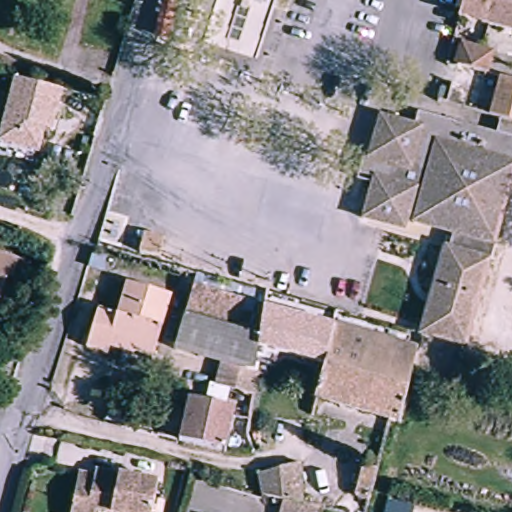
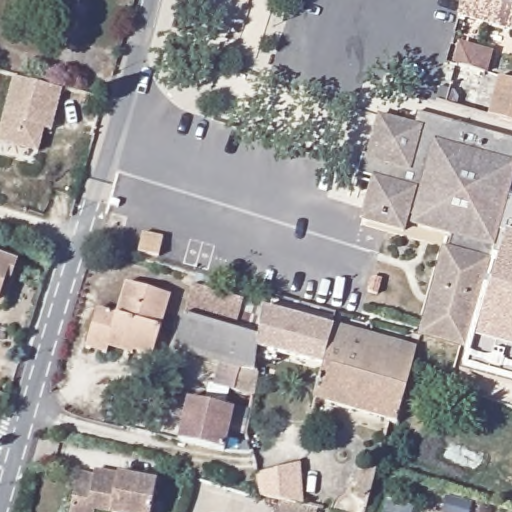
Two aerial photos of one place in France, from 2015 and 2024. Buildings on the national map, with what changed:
unchanged [(464,0),(512,0),(512,29),(460,15),(464,0)]
demolished [(169,18),(164,37),(153,34),(158,15),(169,18)]
unchanged [(497,115),(437,99),(449,57),(458,60),(464,40),(503,51),(497,70),(512,75),(512,119),(497,115)]
unchanged [(37,155),(0,146),(0,133),(13,77),(61,89),(53,121),(50,134),(43,132),(37,155)]
unchanged [(399,231),(357,218),(369,175),(371,175),(376,161),(364,157),(376,115),(409,124),(412,112),(431,119),(399,231)]
unchanged [(443,252),(444,252),(449,236),(409,224),(410,217),(407,216),(403,230),(399,231),(431,119),(491,135),(497,115),(512,119),(512,181),(463,351),(418,337),(443,252)]
new [(464,379),(512,216),(512,393),(464,379)]
unchanged [(163,237),(158,256),(138,251),(144,231),(163,237)]
unchanged [(129,242),(128,248),(108,242),(109,236),(129,242)]
unchanged [(3,306),(0,305),(0,250),(17,255),(3,306)]
unchanged [(221,379),(223,372),(226,358),(179,345),(198,273),(267,293),(266,301),(246,294),(237,325),(261,332),(265,307),(414,352),(408,378),(396,420),(386,417),(309,395),(321,361),(289,352),(282,370),(256,363),(257,356),(254,355),(249,357),(246,359),(244,362),(244,365),(244,369),(246,373),(243,374),(241,385),(221,379)]
unchanged [(108,343),(105,350),(83,345),(94,303),(113,308),(121,276),(166,287),(151,349),(135,345),(134,348),(108,343)]
unchanged [(230,448),(183,442),(188,399),(236,405),(230,448)]
unchanged [(312,497),(354,497),(359,462),(380,464),(374,503),(361,503),(361,512),(316,512),(271,512),(276,496),(257,500),(248,472),(299,458),(312,497)]
unchanged [(78,469),(93,473),(94,467),(156,479),(149,512),(128,512),(96,506),(95,512),(69,512),(71,501),(78,469)]
unchanged [(206,512),(197,512),(198,510),(206,512)]

